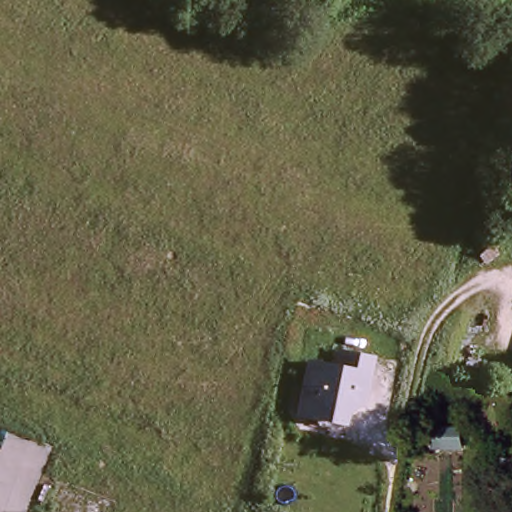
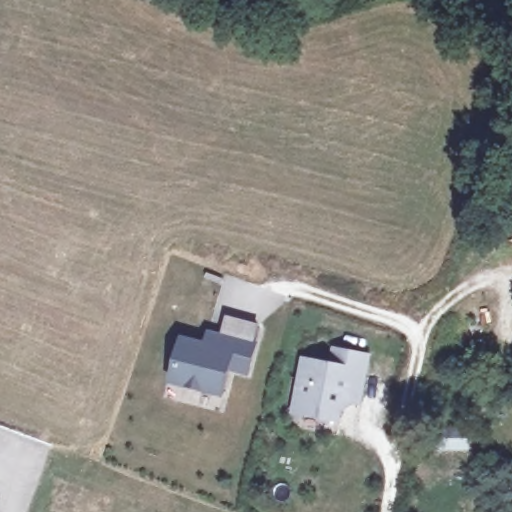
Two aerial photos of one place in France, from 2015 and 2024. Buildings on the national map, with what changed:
new [(208,330),(224,333),(227,316),(262,325),(257,343),(250,379),(232,374),(225,400),(170,386),(182,338),(205,342),(208,330)]
unchanged [(351,394),(346,416),(307,407),(314,375),(309,374),(314,355),(342,361),(345,346),(377,352),(374,368),(367,397),(351,394)]
unchanged [(475,431),(474,450),(442,447),(445,428),(475,431)]

